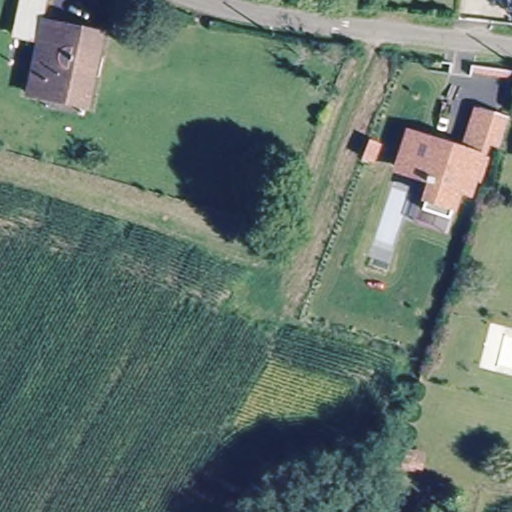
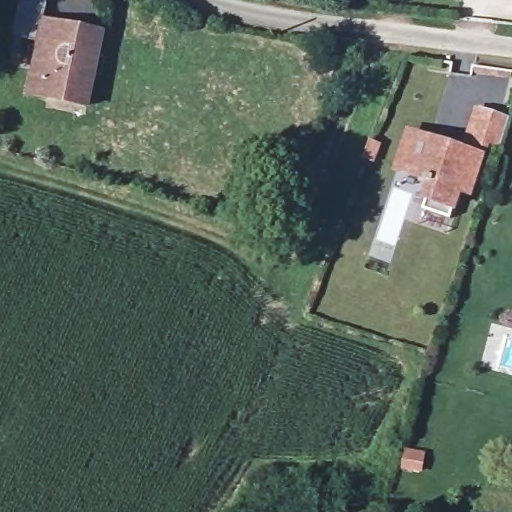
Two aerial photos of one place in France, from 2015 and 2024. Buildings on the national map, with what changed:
unchanged [(13,0),(40,0),(33,36),(8,32),(13,0)]
unchanged [(38,21),(92,34),(77,102),(24,90),(38,21)]
unchanged [(430,213),(421,210),(429,184),(424,182),(425,179),(398,170),(409,136),(450,149),(461,152),(476,107),(506,116),(501,132),(497,147),(482,142),(477,157),(482,159),(476,179),(471,177),(466,191),(457,189),(448,219),(430,213)]

